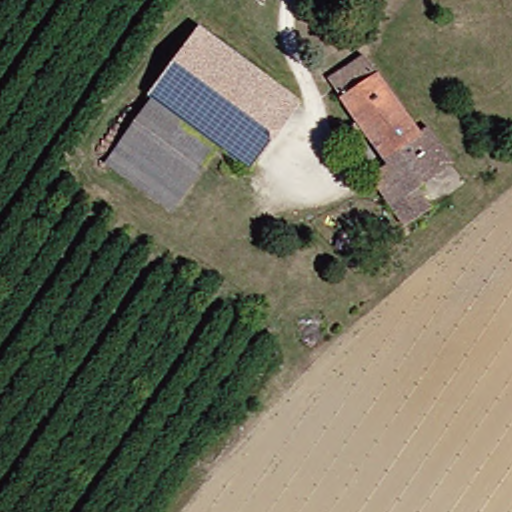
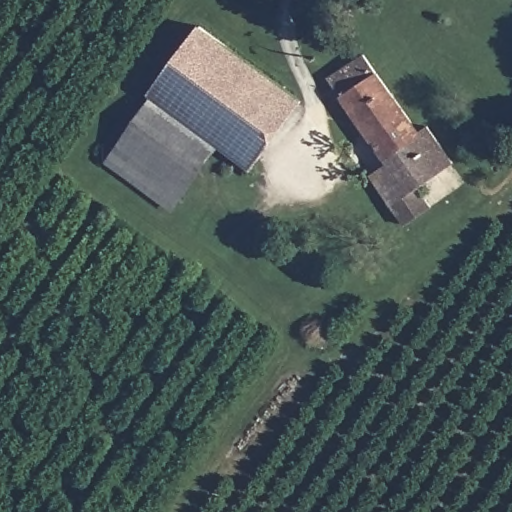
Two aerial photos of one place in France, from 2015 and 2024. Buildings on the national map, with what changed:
unchanged [(233,155),(223,147),(158,96),(209,30),(283,87),(233,155)]
unchanged [(407,227),(393,206),(373,179),(362,161),(379,146),(330,84),(363,59),(418,135),(432,124),(455,158),(416,189),(430,210),(407,227)]
unchanged [(308,106),(257,172),(233,155),(283,87),(308,106)]
unchanged [(223,147),(171,210),(108,159),(158,96),(223,147)]

